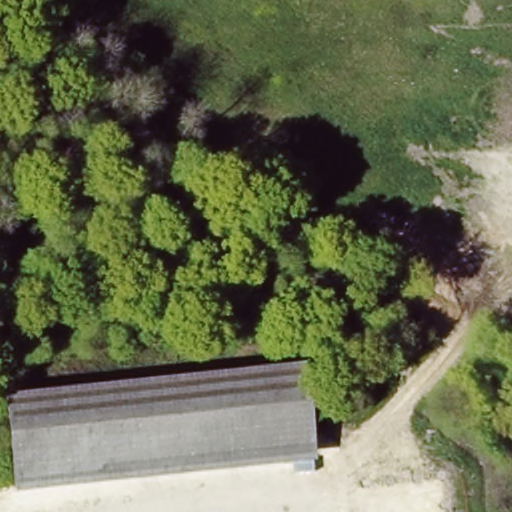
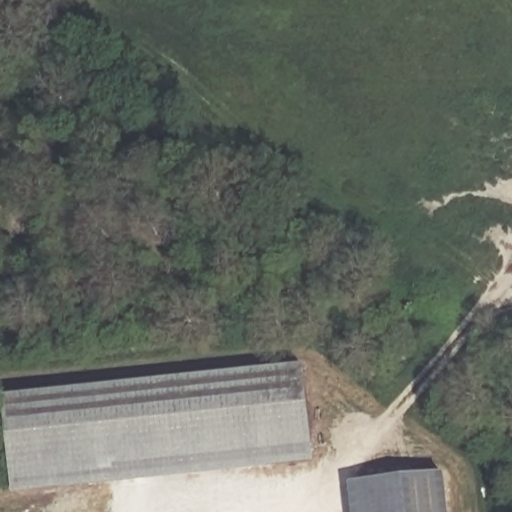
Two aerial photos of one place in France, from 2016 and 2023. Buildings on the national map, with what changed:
unchanged [(8,397),(317,367),(324,469),(18,497),(8,397)]
new [(444,473),(448,512),(352,512),(349,484),(444,473)]
demolished [(454,475),(458,512),(358,512),(356,483),(454,475)]

